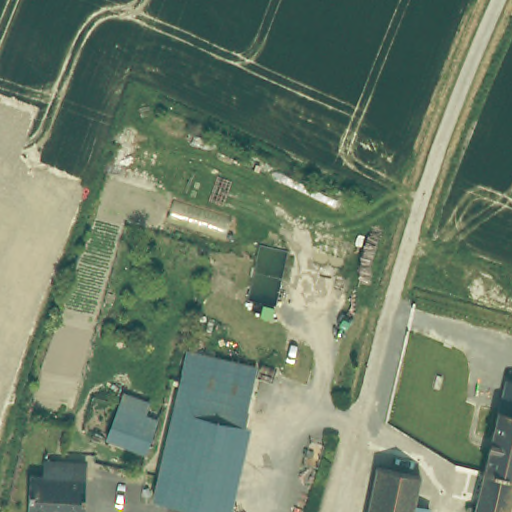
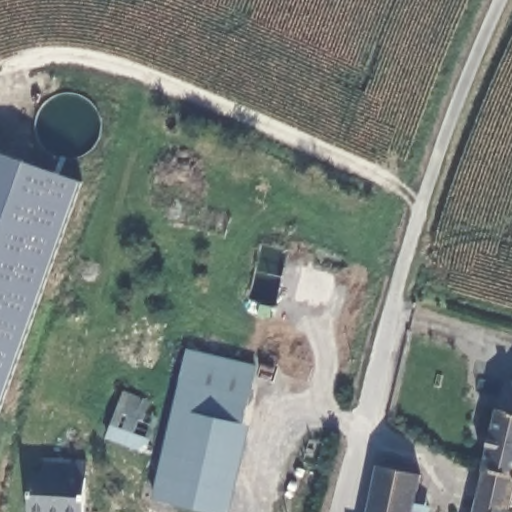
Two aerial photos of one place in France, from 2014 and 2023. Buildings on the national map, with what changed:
new [(0,405),(0,154),(81,184),(0,405)]
demolished [(413,362),(460,376),(467,351),(502,362),(487,411),(408,383),(413,362)]
unchanged [(255,368),(221,512),(216,512),(155,497),(189,352),(255,368)]
unchanged [(506,378),(512,380),(512,415),(497,412),(506,378)]
unchanged [(141,398),(138,411),(157,417),(146,448),(107,437),(122,392),(141,398)]
unchanged [(484,469),(497,412),(512,415),(512,476),(484,469)]
unchanged [(89,461),(87,512),(29,512),(31,475),(47,475),(47,459),(89,461)]
unchanged [(484,469),(512,476),(512,504),(510,512),(474,512),(484,469)]
unchanged [(378,473),(414,482),(409,507),(425,512),(371,512),(378,473)]

